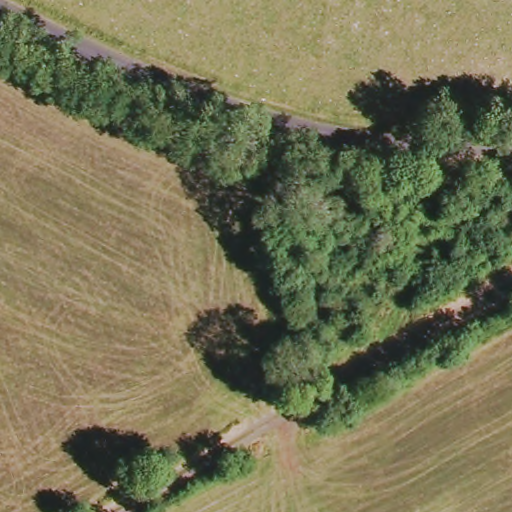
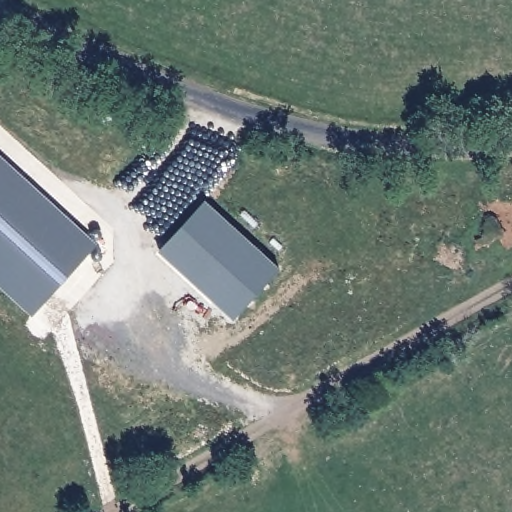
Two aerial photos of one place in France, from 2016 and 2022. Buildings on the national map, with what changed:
new [(32,317),(0,290),(0,158),(96,245),(32,317)]
new [(204,203),(277,270),(232,318),(159,251),(204,203)]

